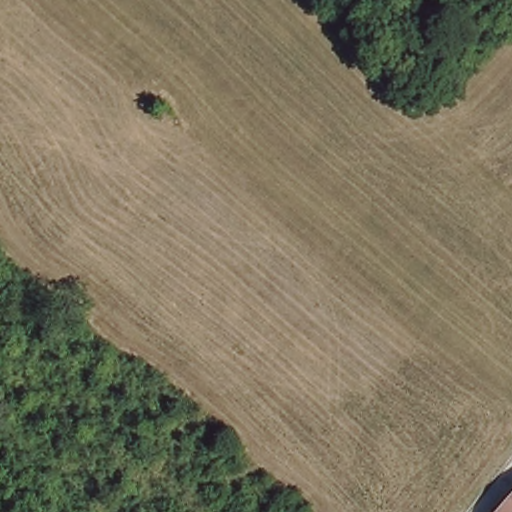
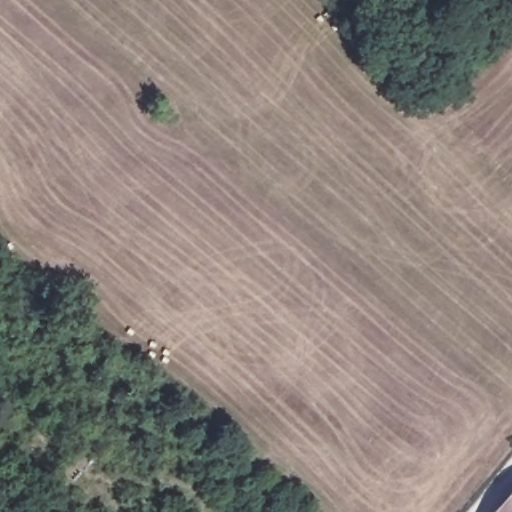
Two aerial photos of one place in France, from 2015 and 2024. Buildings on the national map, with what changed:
unchanged [(512,512),(499,512),(512,498),(512,512)]

